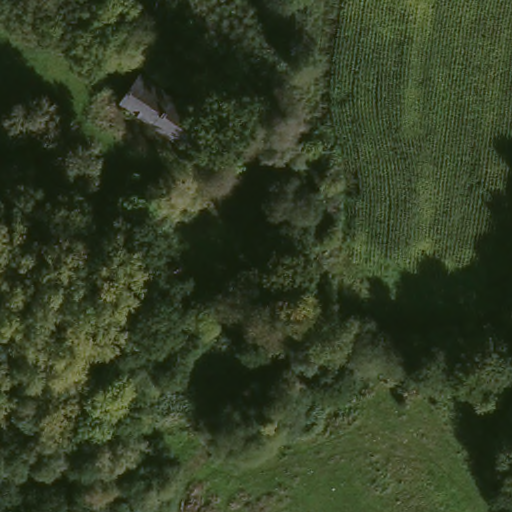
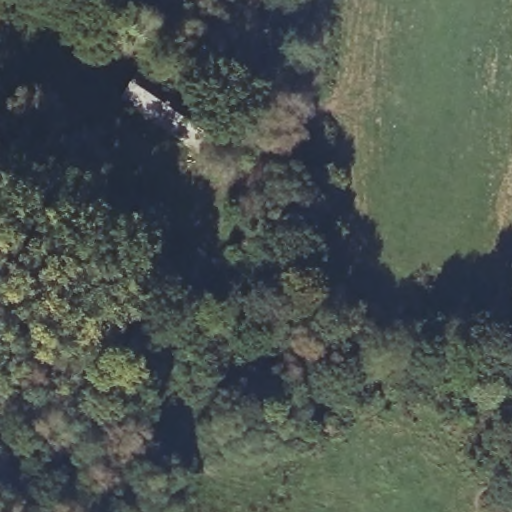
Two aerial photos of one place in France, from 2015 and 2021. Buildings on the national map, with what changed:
unchanged [(215,125),(191,155),(123,101),(145,71),(215,125)]
unchanged [(160,217),(146,234),(125,217),(140,199),(160,217)]

